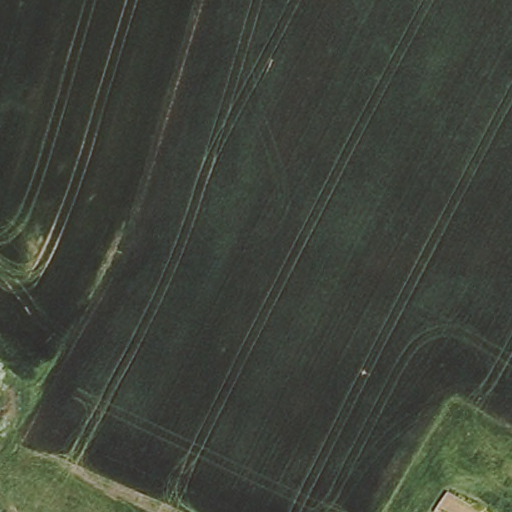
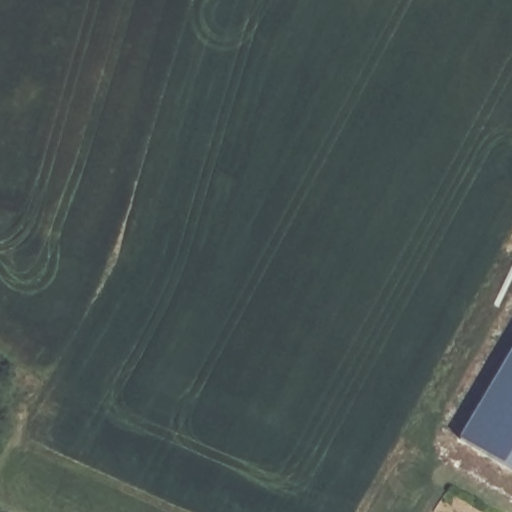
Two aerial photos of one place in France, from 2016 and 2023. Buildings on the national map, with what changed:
new [(512,351),(512,471),(457,439),(512,351)]

